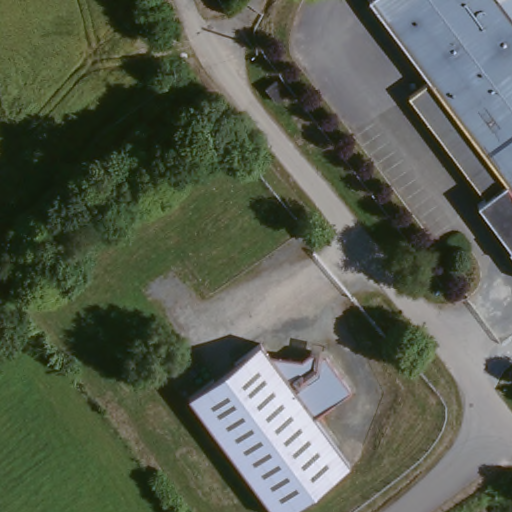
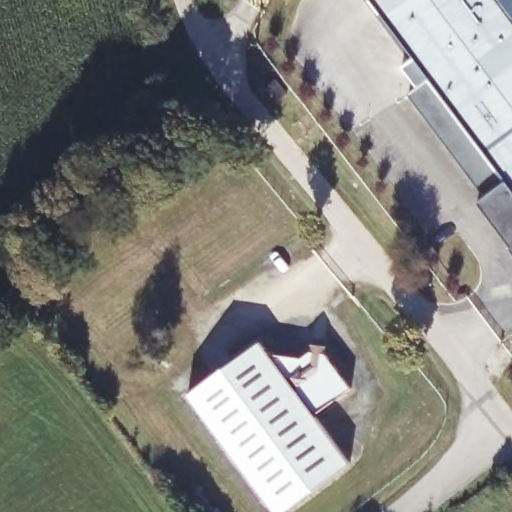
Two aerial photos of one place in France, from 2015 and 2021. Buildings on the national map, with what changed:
unchanged [(491,195),(411,90),(430,74),(372,0),(512,0),(512,237),(483,201),(491,195)]
unchanged [(277,365),(288,357),(299,359),(312,351),(325,352),(352,387),(316,416),(353,465),(291,512),(275,512),(235,460),(187,397),(258,341),(277,365)]
unchanged [(224,468),(233,479),(232,482),(218,492),(208,479),(208,476),(221,467),(224,468)]

